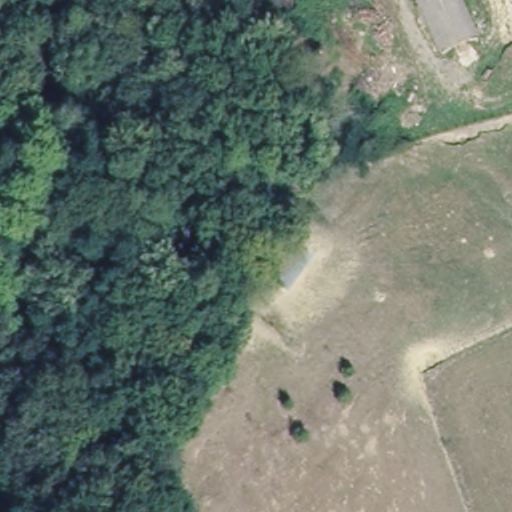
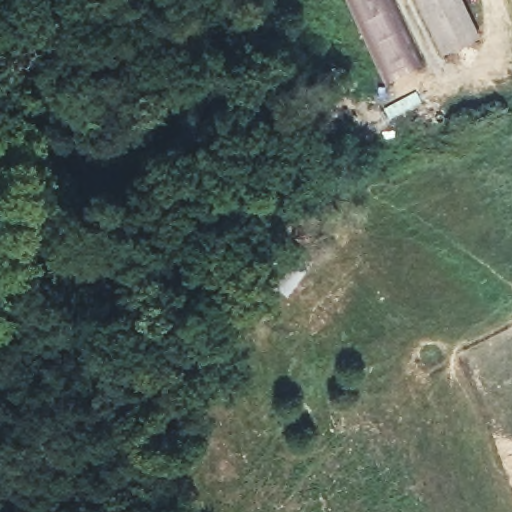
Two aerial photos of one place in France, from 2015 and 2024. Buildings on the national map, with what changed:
new [(420,62),(388,79),(351,0),(391,0),(420,62)]
unchanged [(484,38),(446,56),(420,0),(466,0),(484,38)]
unchanged [(317,242),(293,278),(268,261),(292,226),(317,242)]

